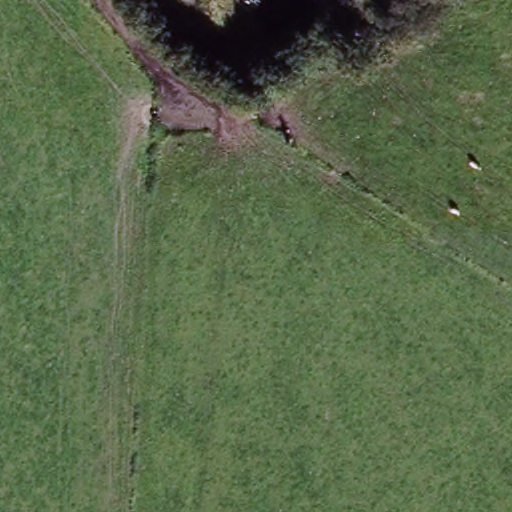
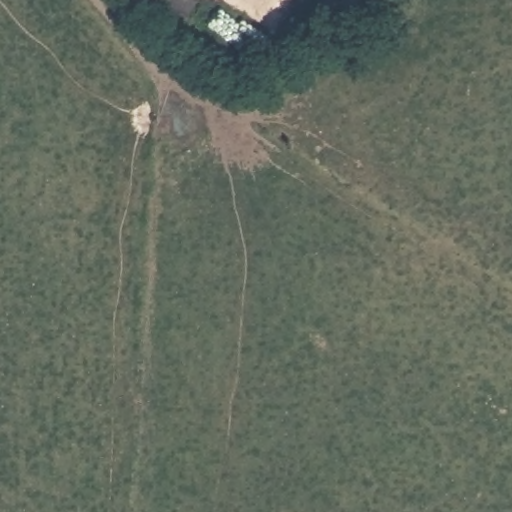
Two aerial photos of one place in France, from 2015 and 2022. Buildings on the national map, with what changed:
unchanged [(131,1),(126,1),(125,0),(124,0),(135,0),(131,1)]

